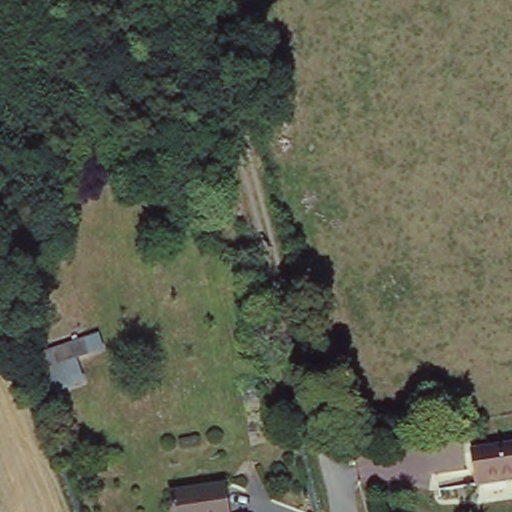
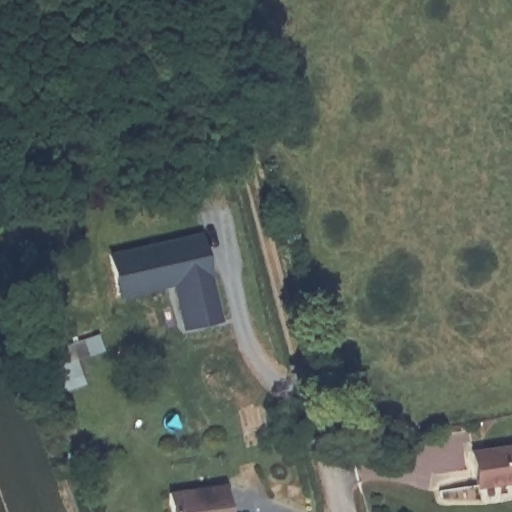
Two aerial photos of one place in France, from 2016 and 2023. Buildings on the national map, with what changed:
new [(222,321),(185,331),(174,284),(119,295),(107,252),(202,232),(222,321)]
new [(105,352),(77,361),(85,387),(51,397),(37,355),(99,335),(105,352)]
unchanged [(512,477),(476,482),(471,450),(512,445),(512,477)]
unchanged [(224,491),(228,512),(173,512),(172,500),(224,491)]

